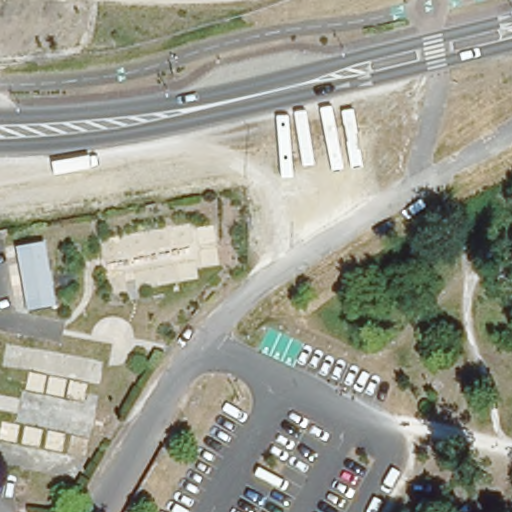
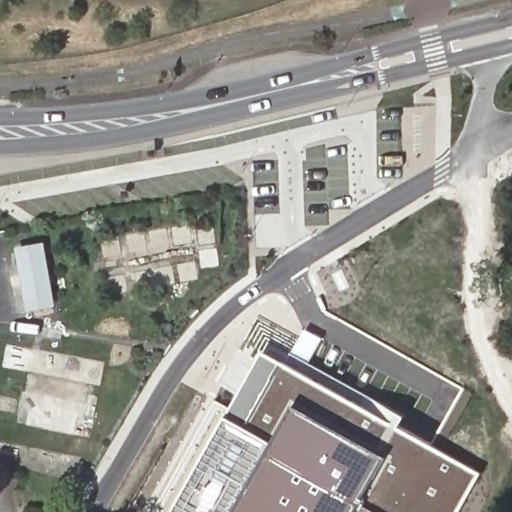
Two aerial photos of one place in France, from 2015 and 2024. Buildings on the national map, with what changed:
unchanged [(52,305),(30,310),(17,252),(39,247),(52,305)]
new [(484,474),(462,512),(163,512),(224,405),(260,347),(484,474)]

